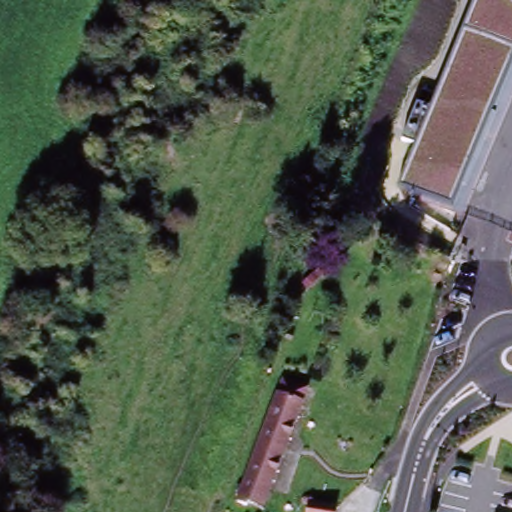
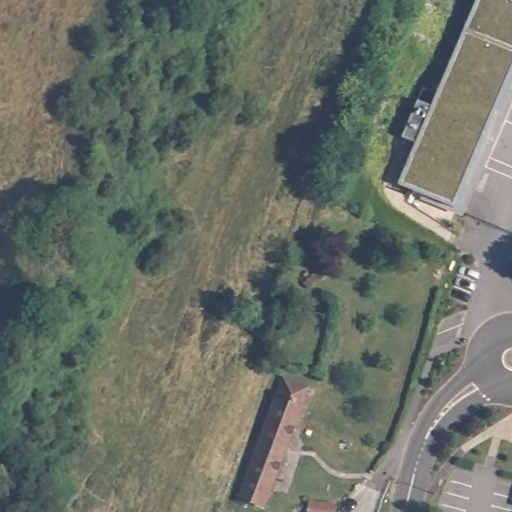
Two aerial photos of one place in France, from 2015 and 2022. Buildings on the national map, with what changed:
unchanged [(403,136),(416,100),(433,106),(477,0),(512,0),(512,62),(453,207),(401,185),(418,142),(403,136)]
unchanged [(281,390),(285,380),(309,387),(265,507),(240,498),(280,389),(281,390)]
unchanged [(307,505),(331,508),(331,512),(307,512),(307,505)]

